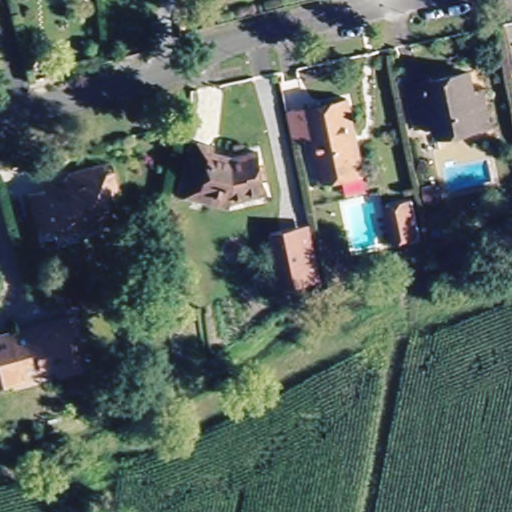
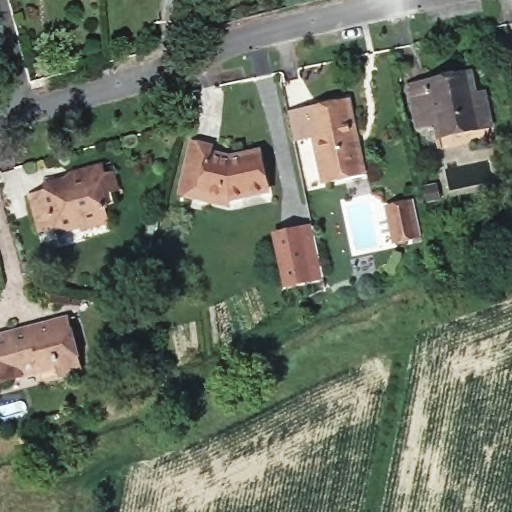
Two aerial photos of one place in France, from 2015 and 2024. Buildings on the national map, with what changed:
unchanged [(489,119),(478,121),(435,132),(433,123),(415,127),(404,82),(465,67),(470,89),(481,86),(489,119)]
unchanged [(348,177),(327,181),(318,136),(300,140),(294,110),(353,99),(365,161),(367,173),(348,177)]
unchanged [(194,141),(214,145),(213,150),(237,169),(262,164),(269,194),(232,201),(185,195),(194,141)]
unchanged [(26,196),(72,185),(70,175),(103,166),(106,177),(114,175),(119,195),(100,200),(107,228),(78,235),(76,225),(35,236),(26,196)]
unchanged [(396,246),(389,215),(386,203),(411,197),(413,209),(421,240),(396,246)]
unchanged [(277,226),(305,221),(315,220),(321,251),(324,271),(314,273),(287,278),(277,226)]
unchanged [(81,367),(53,374),(52,366),(0,378),(0,332),(69,316),(81,367)]

